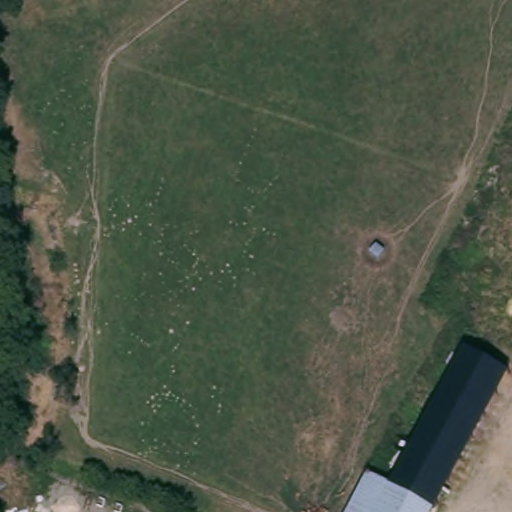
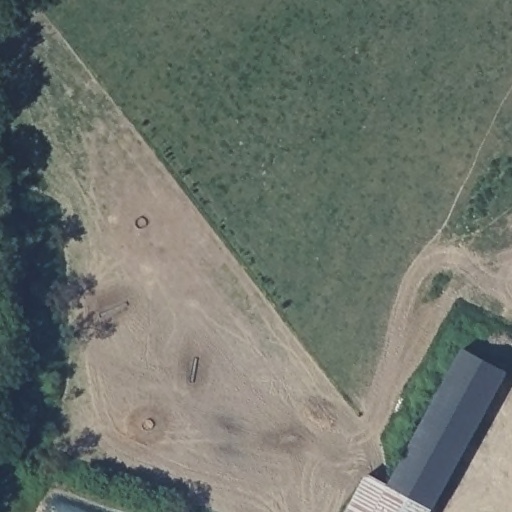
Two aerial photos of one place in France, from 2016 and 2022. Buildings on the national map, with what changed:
unchanged [(464,346),(512,370),(512,374),(438,510),(391,486),(464,346)]
unchanged [(351,512),(371,476),(391,486),(438,510),(437,512),(351,512)]

